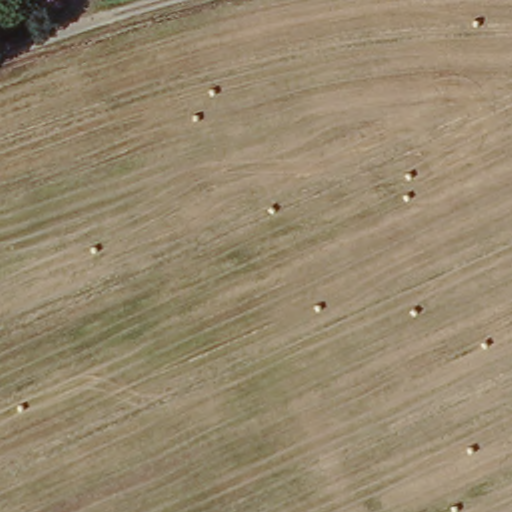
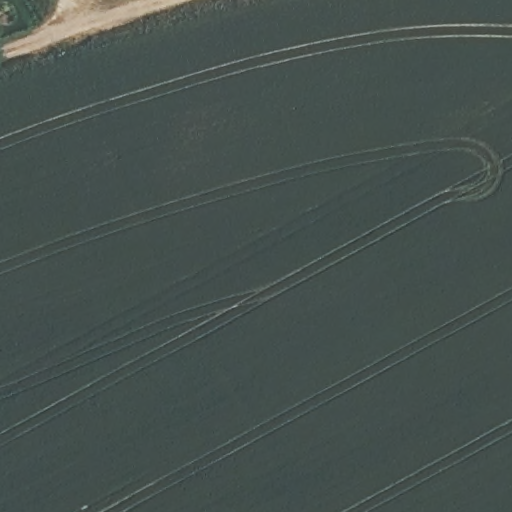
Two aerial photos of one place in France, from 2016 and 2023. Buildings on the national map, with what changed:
[]

